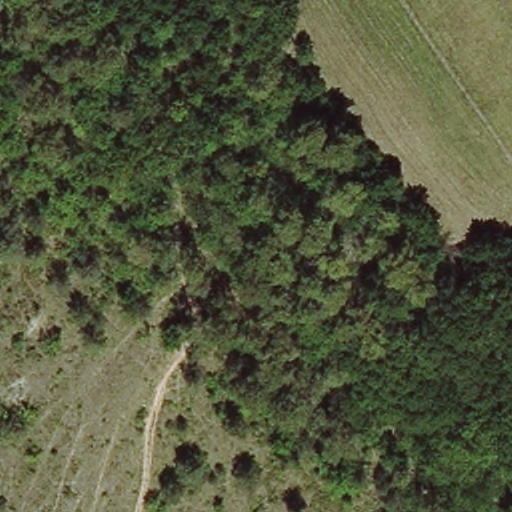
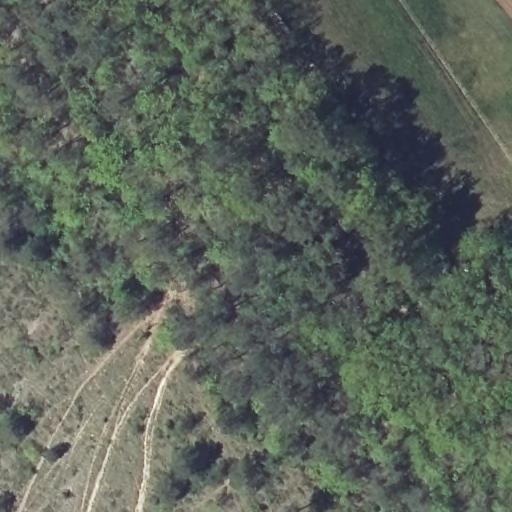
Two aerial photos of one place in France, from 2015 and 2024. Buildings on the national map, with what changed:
[]

